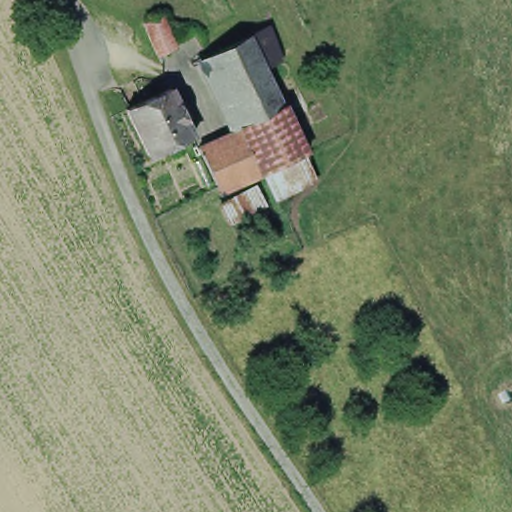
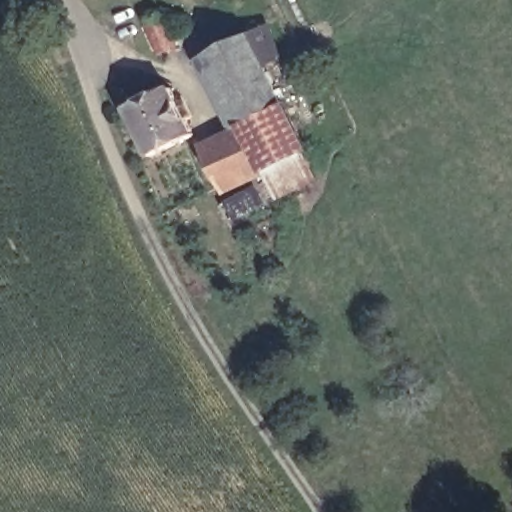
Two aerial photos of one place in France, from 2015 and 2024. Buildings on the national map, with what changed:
unchanged [(162,59),(156,46),(145,26),(163,17),(173,37),(179,49),(162,59)]
unchanged [(266,67),(271,62),(276,61),(286,62),(291,67),(293,72),(291,82),(286,87),(281,89),(271,87),(280,106),(241,126),(206,56),(244,39),(264,77),(266,67)]
unchanged [(187,134),(145,154),(123,105),(164,85),(187,134)]
unchanged [(241,126),(280,106),(303,149),(305,155),(296,159),(279,167),(259,177),(258,171),(236,128),(241,126)]
unchanged [(259,177),(221,197),(219,193),(196,148),(236,128),(258,171),(259,177)]
unchanged [(308,182),(271,201),(259,177),(279,167),(296,159),(308,182)]
unchanged [(269,231),(233,249),(214,212),(250,194),(269,231)]

